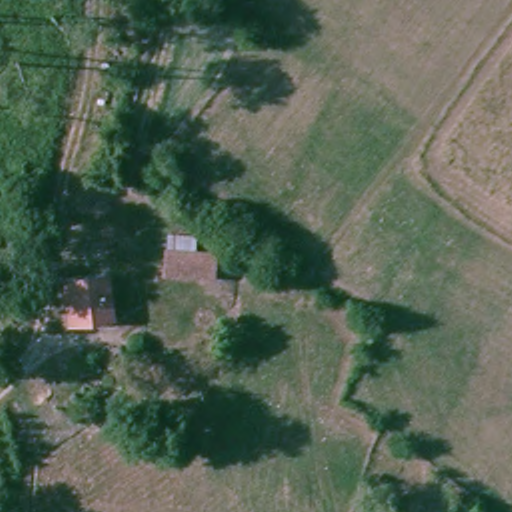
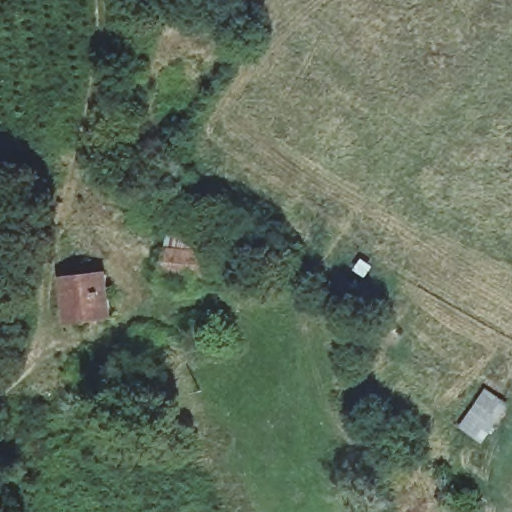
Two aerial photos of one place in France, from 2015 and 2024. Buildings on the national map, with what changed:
unchanged [(161,270),(161,248),(214,250),(214,273),(161,270)]
unchanged [(71,318),(68,281),(105,277),(110,315),(71,318)]
new [(511,405),(485,445),(460,428),(486,389),(511,405)]

